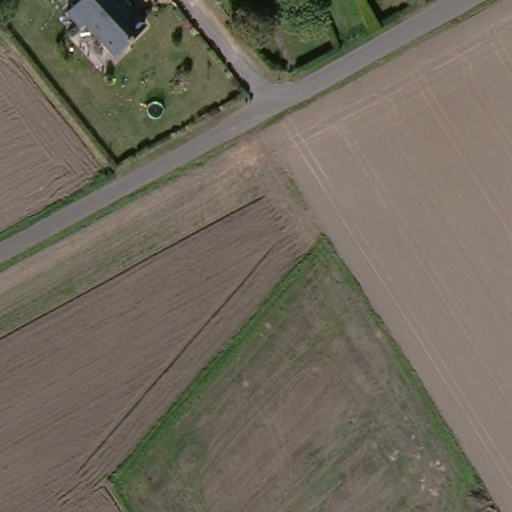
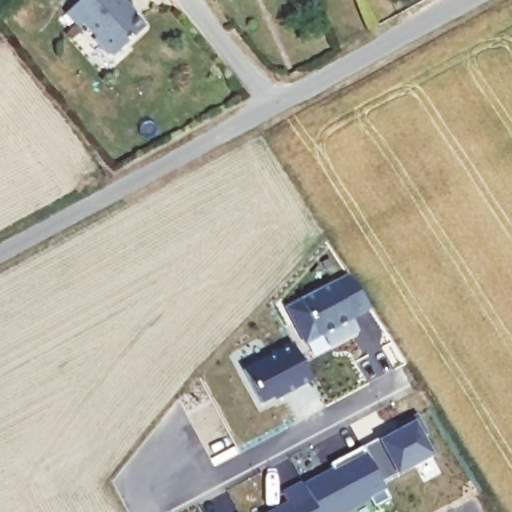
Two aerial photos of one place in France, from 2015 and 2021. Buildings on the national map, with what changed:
unchanged [(145,14),(113,42),(84,11),(80,15),(67,0),(132,0),(145,14)]
new [(373,310),(353,320),(361,331),(327,348),(321,335),(303,345),(285,308),(300,301),(334,283),(350,275),(373,310)]
new [(296,344),(312,379),(262,406),(245,372),(296,344)]
new [(397,473),(381,442),(405,429),(402,425),(416,416),(427,434),(423,436),(432,453),(397,473)]
new [(333,459),(367,442),(393,494),(377,502),(372,494),(338,512),(323,512),(307,480),(337,465),(333,459)]
new [(285,492),(303,484),(318,512),(275,512),(291,502),(285,492)]

